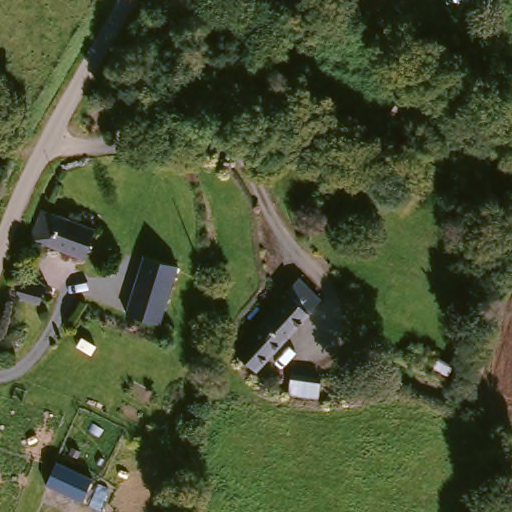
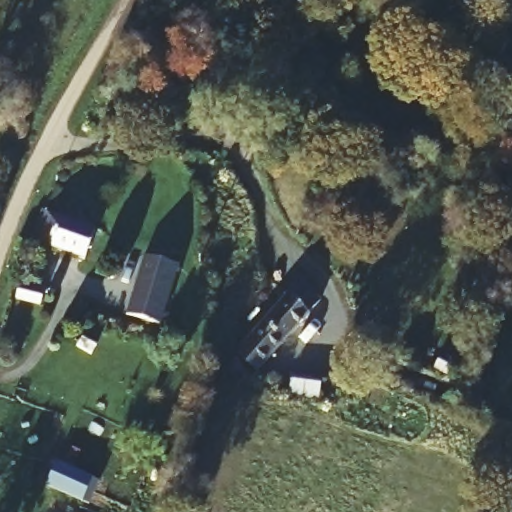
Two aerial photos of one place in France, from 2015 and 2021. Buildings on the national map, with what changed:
unchanged [(312,17),(321,20),(324,27),(324,36),(319,40),(311,43),(304,39),(301,34),(299,27),(303,22),(306,20),(312,17)]
unchanged [(393,100),(384,110),(374,102),(384,92),(393,100)]
unchanged [(401,109),(401,111),(401,114),(399,117),(395,117),(392,117),(391,115),(391,112),(391,111),(391,110),(392,109),(393,107),(396,106),(399,107),(401,109)]
unchanged [(33,211),(102,235),(95,257),(80,252),(77,258),(23,240),(33,211)]
unchanged [(179,266),(161,324),(126,313),(144,255),(179,266)]
unchanged [(14,282),(38,288),(33,307),(8,301),(14,282)]
unchanged [(276,305),(301,283),(321,307),(307,318),(303,322),(303,325),(251,368),(231,345),(276,305)]
unchanged [(318,402),(286,397),(289,376),(319,380),(318,402)]
unchanged [(92,477),(84,502),(48,485),(56,462),(92,477)]

